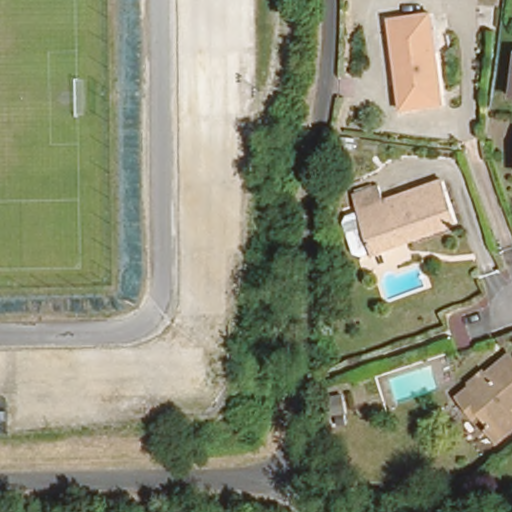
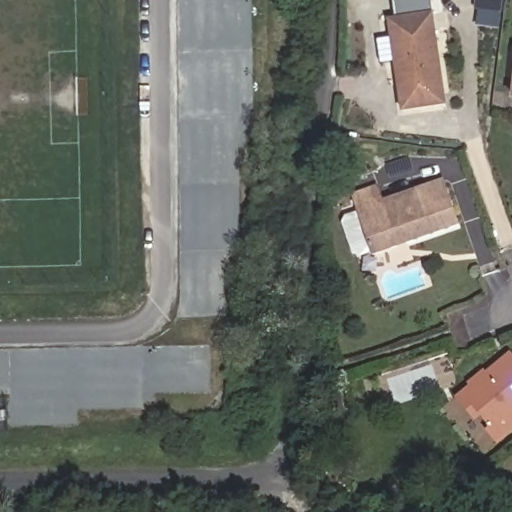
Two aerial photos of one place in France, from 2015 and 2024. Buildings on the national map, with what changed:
unchanged [(425,16),(442,109),(394,116),(378,24),(425,16)]
unchanged [(504,106),(509,61),(512,62),(512,107),(504,106)]
unchanged [(347,234),(364,228),(352,198),(378,188),(383,203),(444,181),(460,228),(375,258),(373,253),(356,260),(347,234)]
unchanged [(506,357),(512,366),(512,409),(508,413),(512,419),(512,429),(489,447),(480,433),(486,429),(473,413),(465,419),(450,399),(506,357)]

